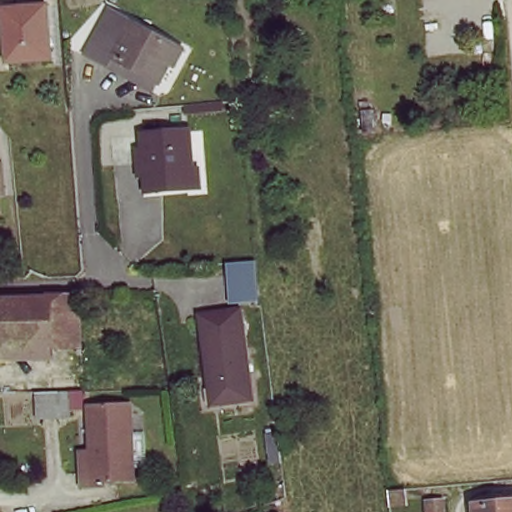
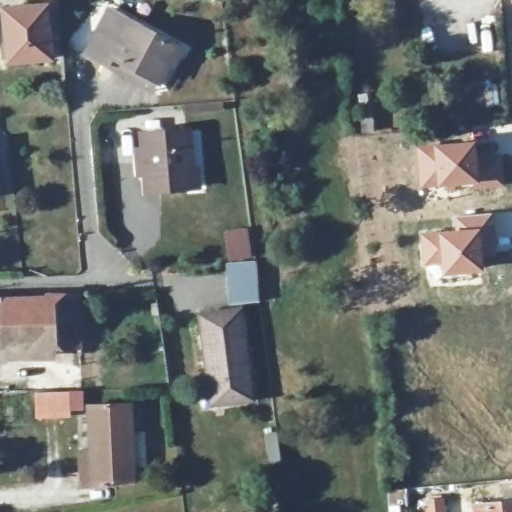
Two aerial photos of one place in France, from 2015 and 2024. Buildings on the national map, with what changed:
unchanged [(47,7),(50,58),(8,61),(7,10),(47,7)]
unchanged [(108,66),(87,54),(112,10),(180,47),(185,50),(177,66),(171,64),(160,84),(155,92),(108,66)]
unchanged [(189,187),(147,190),(146,174),(140,174),(140,161),(138,148),(143,148),(143,132),(148,132),(186,130),(192,129),(194,155),(195,171),(199,170),(200,187),(189,187)]
new [(477,140),(481,176),(501,170),(503,187),(477,190),(477,182),(420,189),(415,144),(477,140)]
new [(454,228),(453,216),(488,212),(490,226),(482,227),(485,268),(441,274),(440,265),(422,266),(418,232),(454,228)]
unchanged [(264,303),(240,306),(235,266),(260,263),(264,303)]
unchanged [(0,351),(0,307),(51,307),(52,301),(78,300),(80,348),(0,351)]
unchanged [(212,372),(207,340),(205,317),(212,317),(235,314),(240,313),(243,337),(251,404),(221,407),(216,407),(213,387),(212,372)]
unchanged [(71,415),(60,415),(60,420),(40,421),(38,397),(70,396),(71,415)]
unchanged [(82,456),(92,456),(91,410),(134,408),(137,485),(110,486),(110,491),(83,492),(82,456)]
unchanged [(445,503),(445,512),(428,512),(428,505),(445,503)]
unchanged [(512,504),(512,512),(479,512),(478,507),(512,504)]

